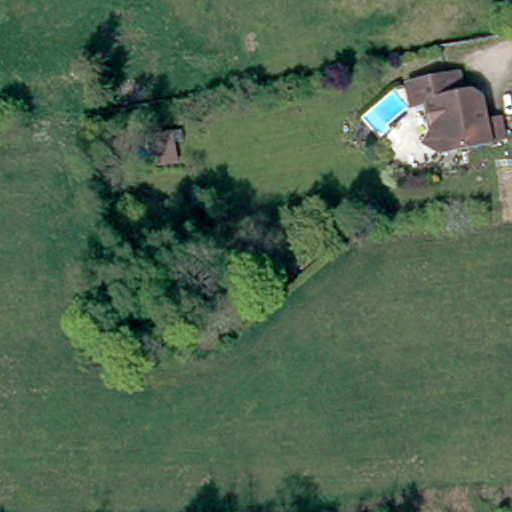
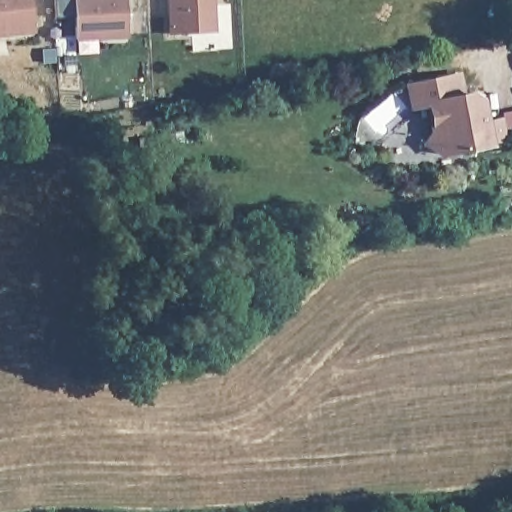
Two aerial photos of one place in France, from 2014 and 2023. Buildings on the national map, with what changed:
new [(0,37),(0,0),(31,0),(35,32),(0,37)]
new [(128,36),(75,39),(74,0),(125,0),(128,36)]
new [(215,32),(168,34),(167,0),(214,0),(215,32)]
unchanged [(426,101),(412,104),(408,82),(457,72),(461,91),(468,89),(480,96),(481,102),(427,105),(426,101)]
unchanged [(443,151),(424,140),(432,127),(427,105),(481,102),(488,140),(443,151)]

